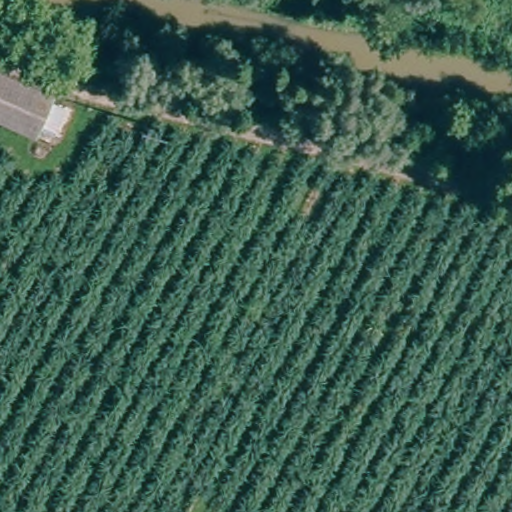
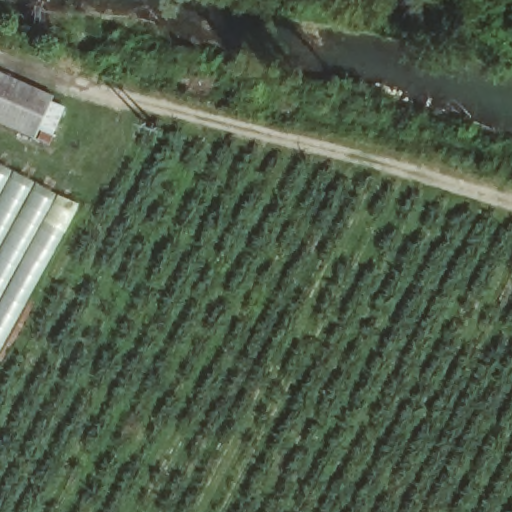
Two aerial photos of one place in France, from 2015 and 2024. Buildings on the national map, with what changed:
unchanged [(0,122),(0,78),(51,100),(35,137),(0,122)]
new [(0,161),(80,204),(0,352),(0,161)]

